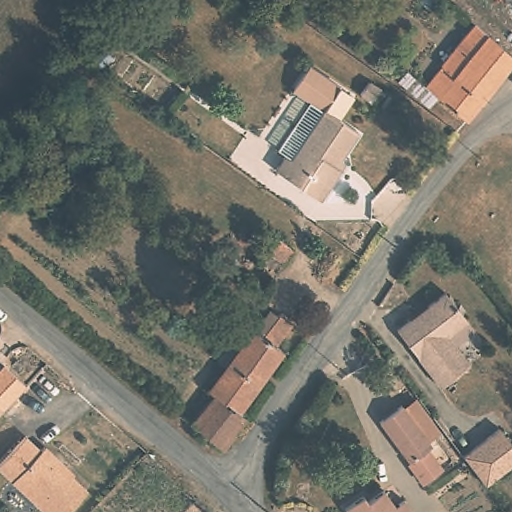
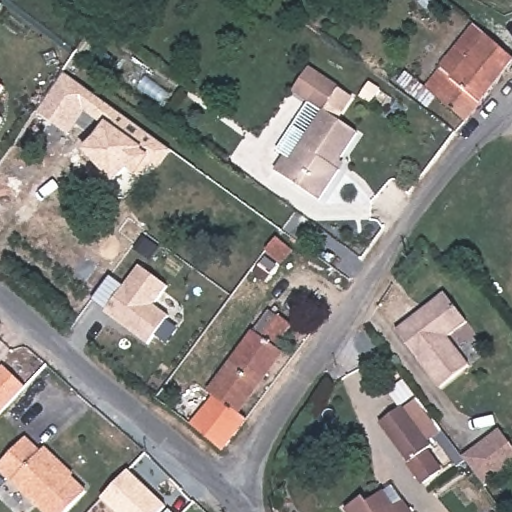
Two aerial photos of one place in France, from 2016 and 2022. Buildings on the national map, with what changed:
unchanged [(442,67),(441,66),(475,25),(512,57),(512,63),(466,121),(424,90),(442,67)]
unchanged [(293,90),(309,67),(339,89),(324,111),(293,90)]
new [(64,73),(172,150),(160,170),(153,164),(148,170),(143,166),(137,176),(128,170),(113,183),(81,150),(95,137),(104,125),(83,111),(67,135),(37,112),(64,73)]
unchanged [(368,82),(380,90),(373,101),(361,94),(368,82)]
unchanged [(0,95),(0,83),(6,87),(0,95)]
unchanged [(339,89),(352,97),(337,120),(357,133),(335,166),(340,170),(319,200),(275,171),(286,155),(291,160),(324,111),(339,89)]
unchanged [(282,263),(266,250),(277,237),(293,250),(282,263)]
new [(138,265),(168,285),(154,305),(169,315),(147,345),(103,312),(138,265)]
unchanged [(467,321),(448,337),(469,365),(441,388),(396,330),(409,320),(427,306),(445,292),(467,321)]
unchanged [(213,395),(208,392),(269,311),(277,316),(278,314),(291,323),(274,345),(282,351),(237,411),(247,419),(223,451),(191,424),(213,395)]
unchanged [(26,387),(0,414),(0,372),(5,367),(26,387)]
unchanged [(425,450),(441,471),(424,483),(380,422),(402,406),(403,408),(414,400),(439,433),(428,441),(431,446),(425,450)]
unchanged [(512,446),(512,466),(486,486),(463,457),(500,430),(512,446)]
unchanged [(40,452),(44,447),(62,465),(60,466),(86,491),(66,512),(45,512),(0,469),(0,463),(25,437),(40,452)]
unchanged [(115,512),(101,498),(128,468),(168,506),(162,512),(115,512)]
unchanged [(363,496),(367,502),(383,491),(395,507),(404,500),(412,512),(347,512),(345,509),(363,496)]

